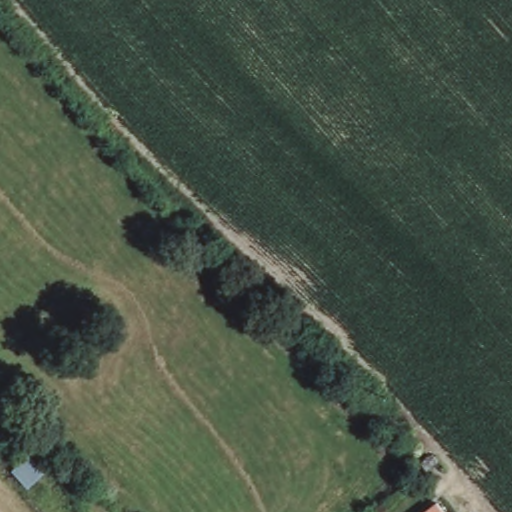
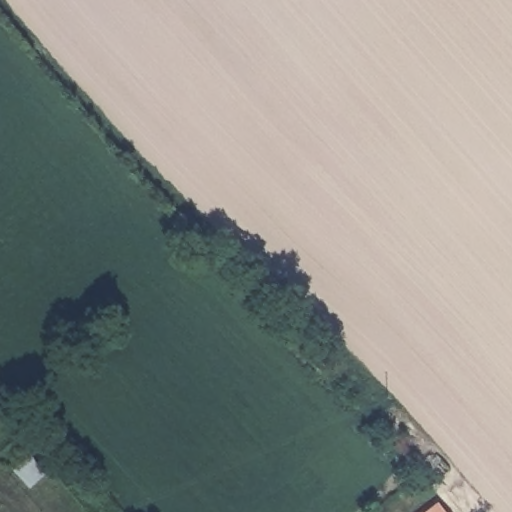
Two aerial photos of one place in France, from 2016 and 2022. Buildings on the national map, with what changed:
unchanged [(418,512),(435,497),(447,512),(418,512)]

